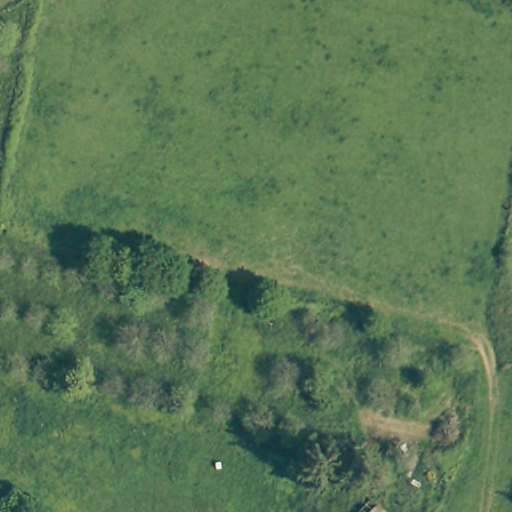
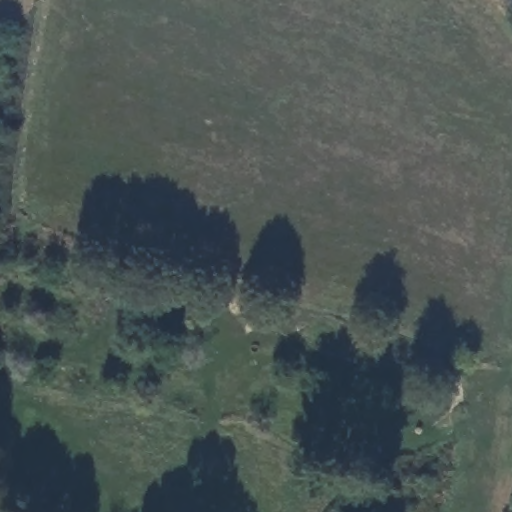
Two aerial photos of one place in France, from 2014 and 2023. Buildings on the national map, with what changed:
unchanged [(359,512),(370,500),(384,512),(359,512)]

